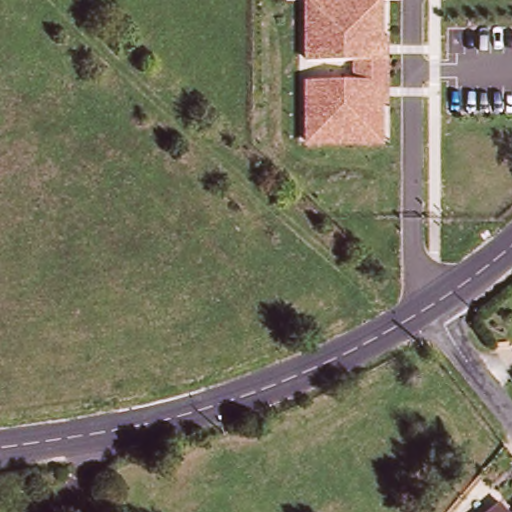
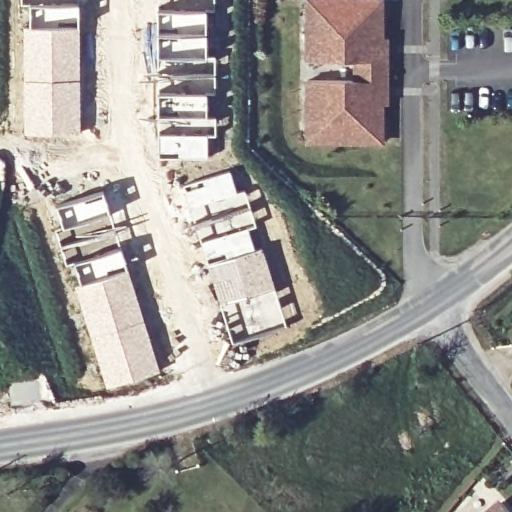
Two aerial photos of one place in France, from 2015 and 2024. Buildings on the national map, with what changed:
new [(28,24),(26,5),(21,5),(21,0),(80,0),(80,24),(28,24)]
new [(215,0),(215,7),(208,7),(209,53),(215,53),(216,92),(209,91),(209,114),(216,114),(216,134),(208,134),(208,157),(159,157),(157,124),(156,5),(169,3),(168,0),(215,0)]
unchanged [(392,34),(392,104),(386,105),(385,145),(306,144),(307,79),(353,78),(353,57),(305,61),(305,0),(385,0),(385,34),(392,34)]
new [(28,24),(80,24),(80,133),(24,135),(23,24),(28,24)]
new [(230,168),(238,190),(245,188),(257,224),(252,226),(200,240),(194,223),(190,224),(179,188),(230,168)]
new [(104,188),(114,226),(75,238),(71,226),(64,229),(55,203),(104,188)]
new [(64,229),(71,226),(75,238),(114,226),(120,244),(73,262),(68,264),(58,231),(64,229)]
new [(252,226),(256,247),(207,262),(200,240),(252,226)]
new [(120,244),(128,267),(79,283),(73,262),(120,244)]
new [(256,247),(263,245),(282,304),(292,301),(297,314),(286,318),(287,321),(234,342),(207,262),(256,247)]
new [(79,283),(128,267),(160,371),(107,388),(74,284),(79,283)]
unchanged [(503,502),(510,512),(491,512),(503,502)]

